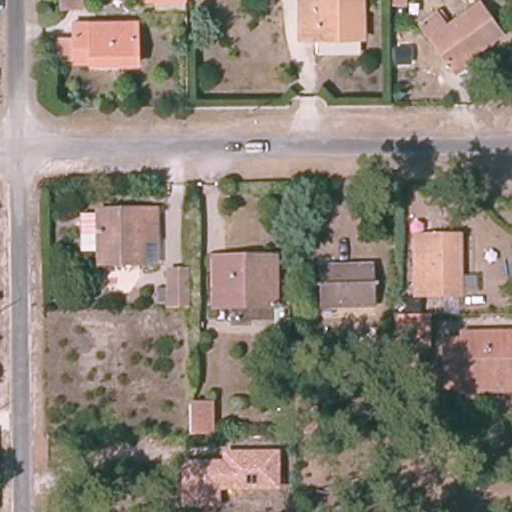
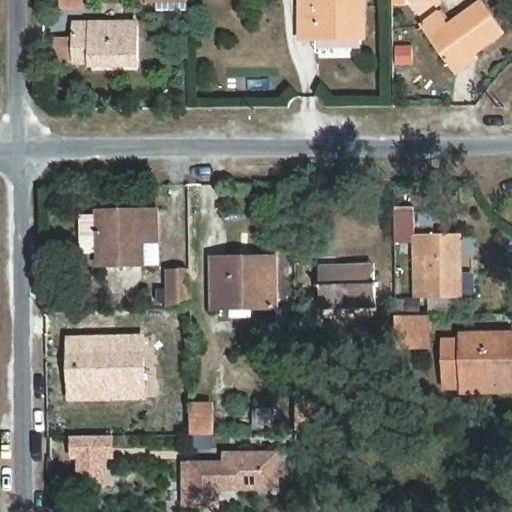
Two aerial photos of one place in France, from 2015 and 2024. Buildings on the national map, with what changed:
unchanged [(64,6),(64,0),(82,0),(82,6),(64,6)]
unchanged [(185,0),(185,4),(155,4),(155,0),(185,0)]
unchanged [(299,41),(299,0),(356,0),(356,41),(299,41)]
unchanged [(417,0),(417,7),(401,6),(400,0),(417,0)]
unchanged [(457,76),(451,66),(423,29),(442,14),(451,28),(485,5),(507,35),(478,55),(481,60),(457,76)]
unchanged [(51,41),(73,40),(73,21),(136,22),(136,62),(73,62),(51,62),(51,41)]
unchanged [(100,261),(100,212),(138,212),(153,212),(154,237),(138,237),(139,261),(100,261)]
unchanged [(412,261),(412,242),(456,241),(456,298),(422,298),(412,298),(412,261)]
unchanged [(279,307),(218,307),(218,258),(277,257),(279,307)]
unchanged [(322,307),(321,272),(338,272),(374,271),(374,277),(374,307),(322,307)]
unchanged [(166,273),(186,273),(185,311),(167,310),(166,273)]
unchanged [(425,341),(393,341),(393,319),(425,319),(425,341)]
new [(70,402),(68,336),(146,334),(148,401),(70,402)]
unchanged [(462,389),(445,389),(445,372),(445,345),(463,345),(463,338),(509,339),(512,339),(512,394),(462,394),(462,389)]
unchanged [(385,435),(385,401),(404,400),(404,435),(385,435)]
unchanged [(299,438),(301,401),(319,401),(321,440),(299,438)]
unchanged [(193,438),(193,406),(212,405),(213,437),(193,438)]
new [(73,437),(115,437),(115,456),(106,456),(106,481),(72,481),(73,437)]
new [(231,463),(231,454),(281,453),(281,486),(225,487),(222,489),(223,502),(197,502),(189,502),(189,464),(197,464),(231,463)]

